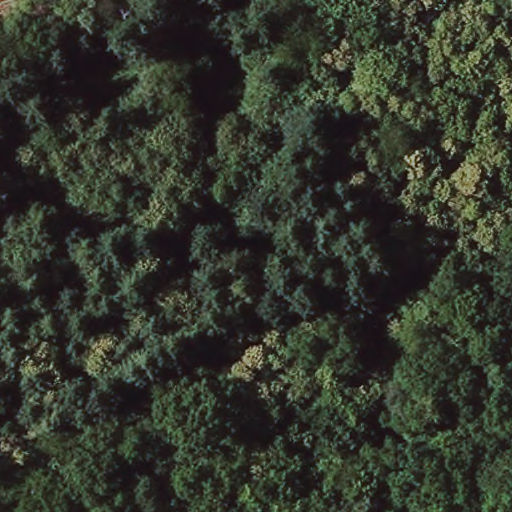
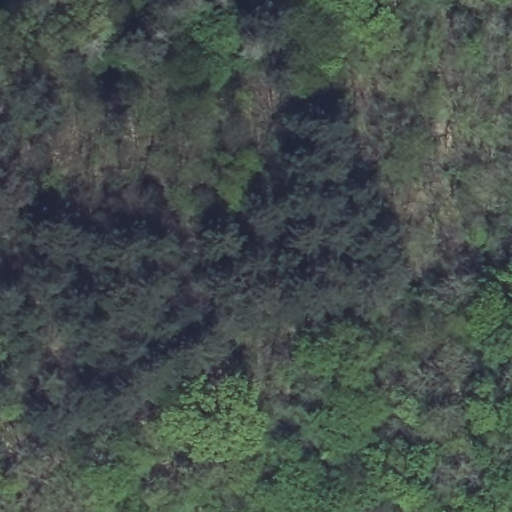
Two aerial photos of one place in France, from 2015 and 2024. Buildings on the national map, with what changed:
[]

